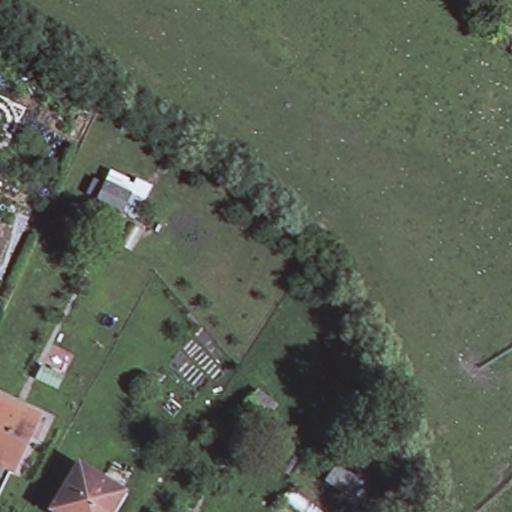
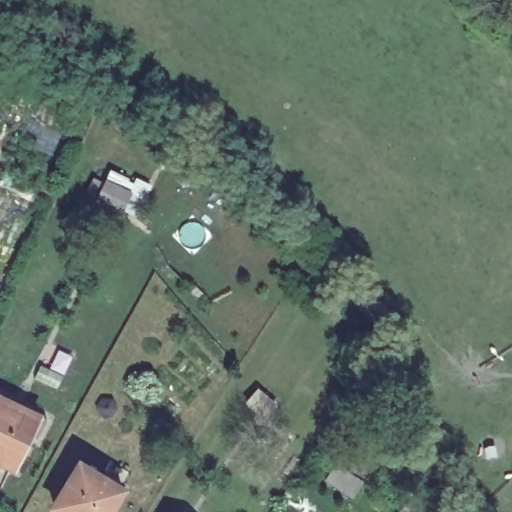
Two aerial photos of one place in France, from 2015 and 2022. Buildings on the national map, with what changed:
unchanged [(133,185),(126,201),(101,189),(108,173),(133,185)]
unchanged [(275,410),(264,422),(245,404),(257,392),(275,410)]
unchanged [(16,471),(0,464),(0,398),(42,416),(16,471)]
unchanged [(84,468),(125,492),(112,512),(62,512),(57,510),(84,468)]
unchanged [(365,485),(361,491),(356,500),(328,482),(337,468),(365,485)]
unchanged [(183,507),(191,512),(180,512),(183,507)]

